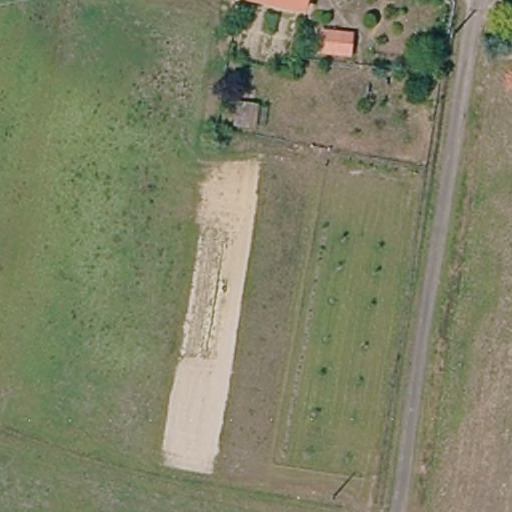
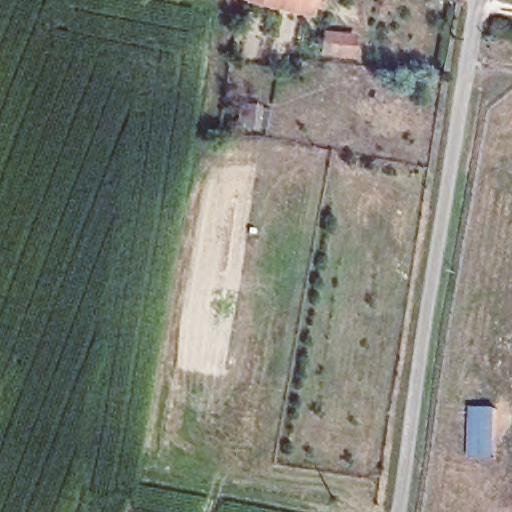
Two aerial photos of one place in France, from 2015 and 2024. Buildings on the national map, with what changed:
unchanged [(299,12),(249,0),(302,0),(299,12)]
unchanged [(318,58),(319,51),(320,33),(350,35),(348,53),(348,59),(318,58)]

